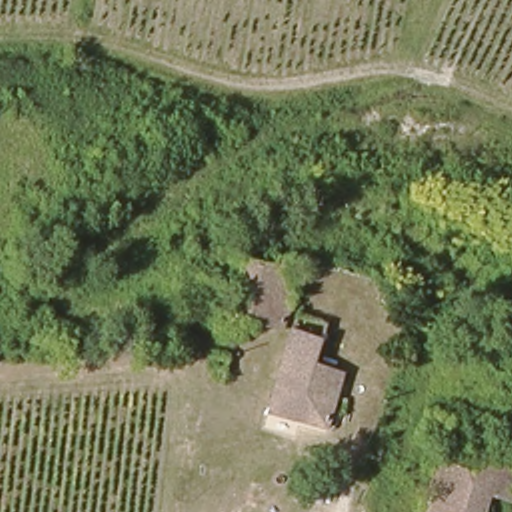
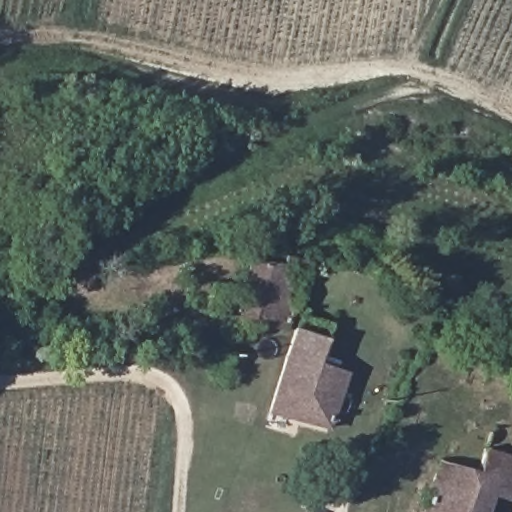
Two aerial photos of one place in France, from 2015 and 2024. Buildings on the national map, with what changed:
unchanged [(287,326),(230,317),(244,254),(300,263),(287,326)]
unchanged [(396,294),(397,294),(391,302),(380,293),(387,286),(396,294)]
unchanged [(288,341),(302,313),(327,321),(325,331),(315,361),(346,370),(338,395),(347,398),(342,411),(332,408),(326,427),(270,411),(288,341)]
unchanged [(215,371),(215,358),(230,359),(229,373),(215,371)]
unchanged [(441,416),(511,442),(504,486),(512,488),(512,494),(511,497),(512,497),(512,508),(510,508),(511,503),(482,495),(476,512),(430,512),(413,512),(415,507),(433,443),(441,416)]
unchanged [(378,443),(387,446),(383,459),(367,453),(371,441),(378,443)]

